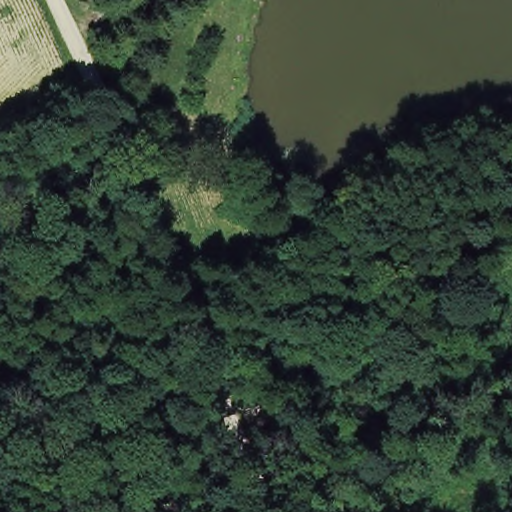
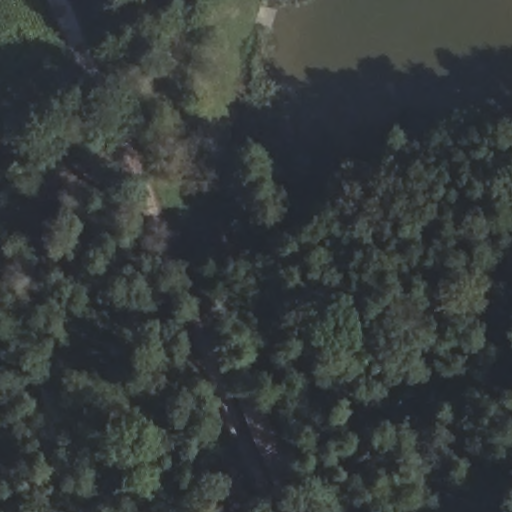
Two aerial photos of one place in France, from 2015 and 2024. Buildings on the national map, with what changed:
[]

